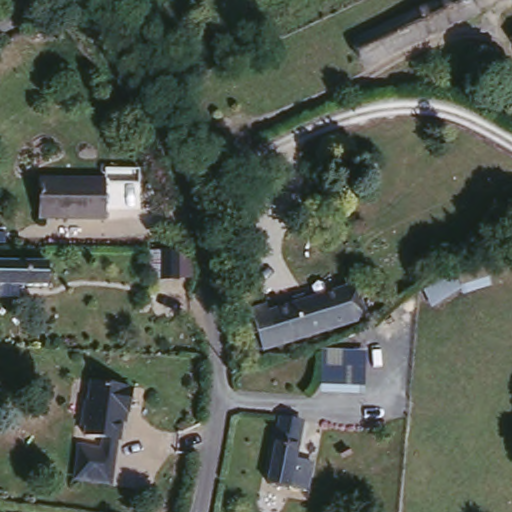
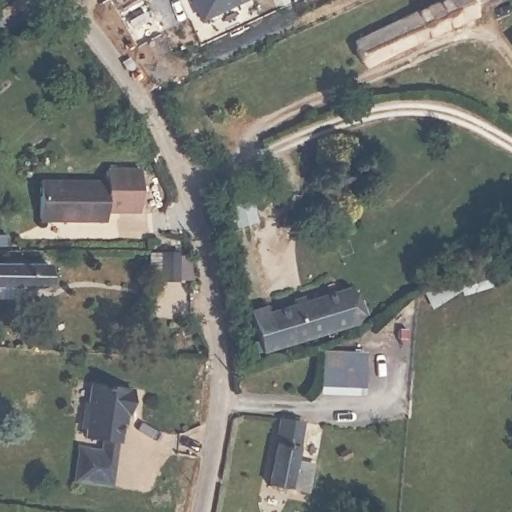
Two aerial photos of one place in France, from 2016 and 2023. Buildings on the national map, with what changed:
new [(191,0),(244,0),(199,19),(191,0)]
unchanged [(367,59),(357,35),(442,0),(470,0),(476,15),(367,59)]
unchanged [(39,183),(105,184),(105,222),(39,221),(39,183)]
unchanged [(244,187),(249,212),(235,215),(229,190),(244,187)]
unchanged [(0,287),(0,256),(48,258),(47,276),(23,275),(23,288),(0,287)]
unchanged [(150,257),(191,258),(191,285),(150,284),(150,257)]
unchanged [(269,311),(272,317),(297,308),(296,302),(306,299),(307,305),(345,292),(350,291),(353,300),(356,299),(358,304),(363,302),(367,316),(355,324),(266,355),(260,357),(257,347),(263,345),(253,316),(269,311)]
unchanged [(362,351),(362,391),(325,390),(327,349),(362,351)]
unchanged [(85,420),(82,419),(85,397),(88,397),(91,377),(133,383),(130,405),(126,404),(122,433),(84,428),(85,420)]
unchanged [(262,484),(263,480),(277,420),(278,416),(300,422),(295,440),(291,457),(302,461),(309,463),(304,490),(296,488),(295,491),(262,484)]
unchanged [(75,478),(80,446),(101,450),(102,442),(121,444),(114,485),(75,478)]

